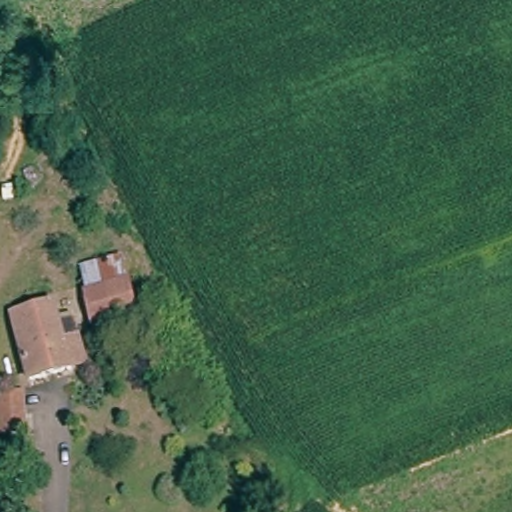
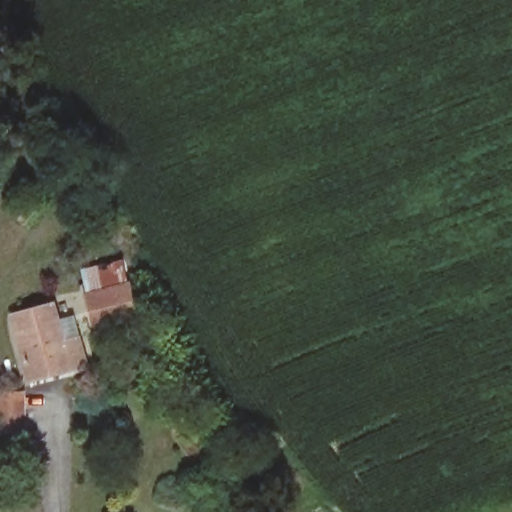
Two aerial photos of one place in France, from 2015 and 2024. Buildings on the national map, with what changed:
unchanged [(136,312),(96,327),(83,285),(123,272),(136,312)]
unchanged [(64,372),(27,382),(11,325),(48,315),(64,372)]
unchanged [(0,392),(23,392),(24,433),(0,434),(0,392)]

